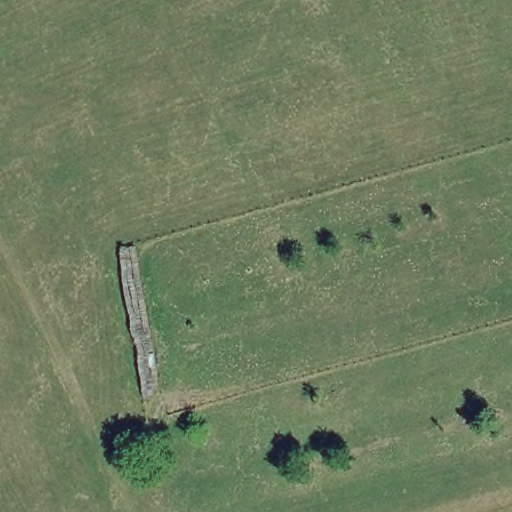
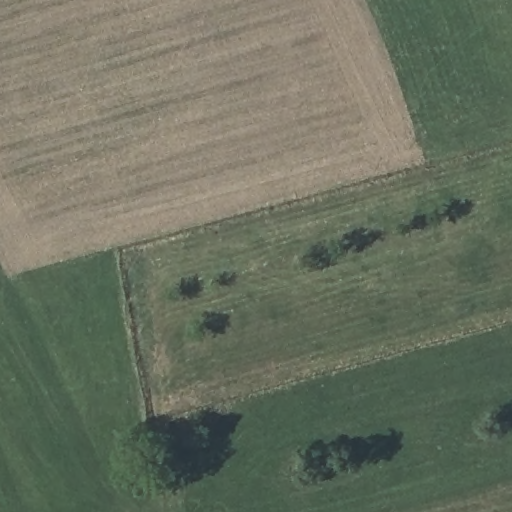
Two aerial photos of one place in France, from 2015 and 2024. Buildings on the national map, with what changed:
[]

